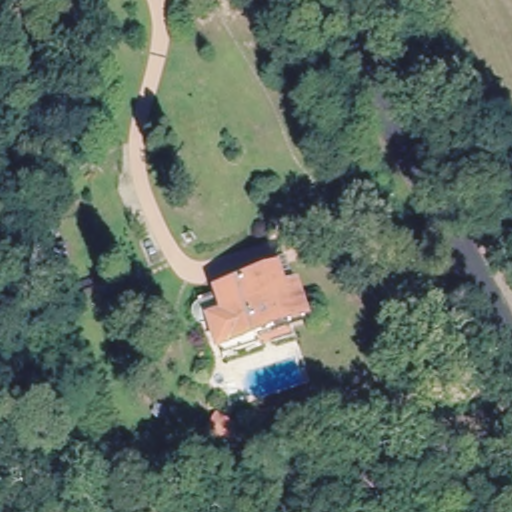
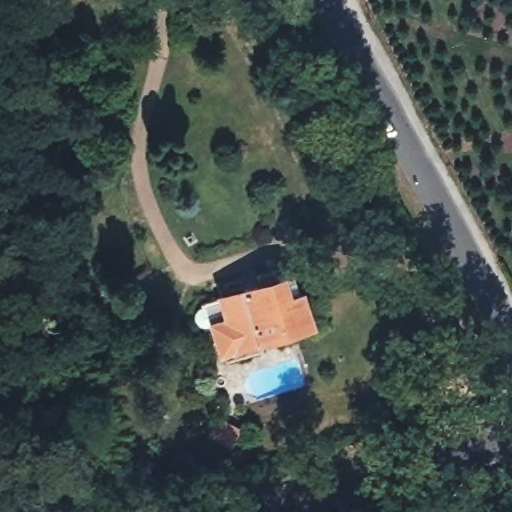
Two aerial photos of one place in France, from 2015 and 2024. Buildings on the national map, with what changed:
unchanged [(231,350),(228,337),(221,310),(212,312),(207,312),(201,308),(199,300),(202,295),(210,291),(271,275),(268,263),(283,258),(298,255),(314,315),(267,327),(271,340),(231,350)]
unchanged [(236,419),(225,433),(208,418),(218,405),(236,419)]

